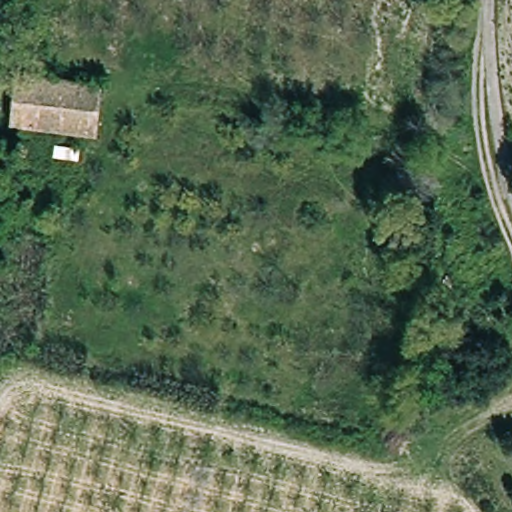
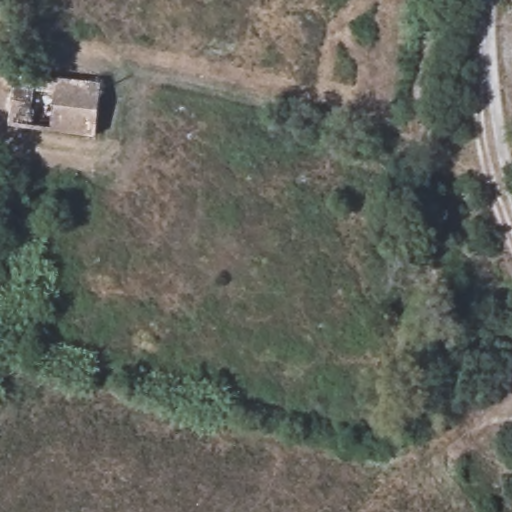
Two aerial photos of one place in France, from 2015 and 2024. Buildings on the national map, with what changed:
unchanged [(94,135),(12,125),(16,78),(97,88),(94,135)]

